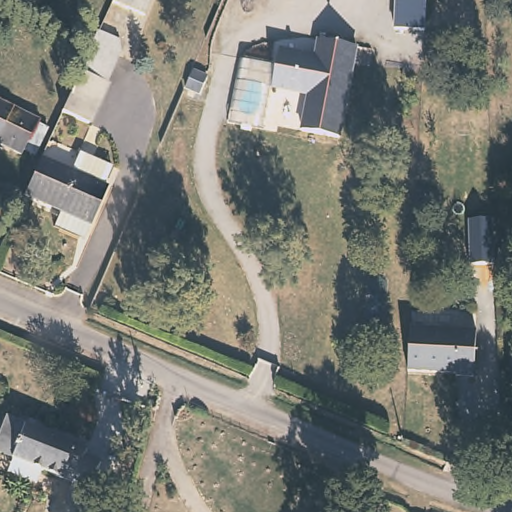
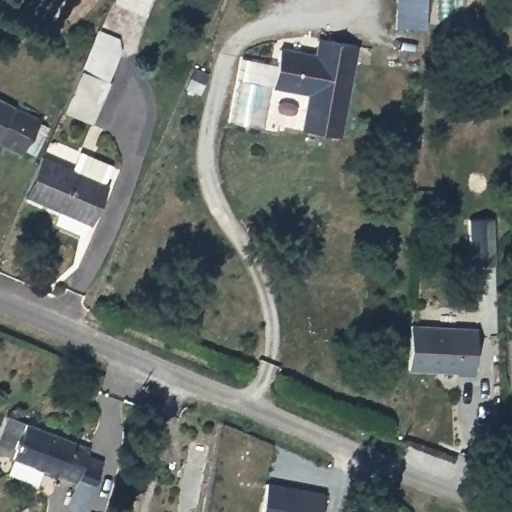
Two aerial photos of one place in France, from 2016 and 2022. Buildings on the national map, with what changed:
unchanged [(145,11),(119,0),(149,0),(145,11)]
unchanged [(424,27),(393,26),(394,0),(425,0),(424,27)]
unchanged [(96,30),(122,41),(124,54),(93,125),(59,111),(96,30)]
unchanged [(356,50),(343,140),(301,134),(306,99),(272,92),(278,54),(313,59),(316,43),(356,50)]
unchanged [(19,155),(7,150),(8,147),(0,144),(0,101),(25,113),(37,118),(19,155)]
unchanged [(80,149),(115,165),(107,185),(82,242),(48,229),(55,212),(20,198),(39,155),(72,169),(80,149)]
unchanged [(451,326),(473,327),(471,374),(453,373),(453,371),(451,370),(406,368),(406,363),(407,323),(451,326)]
unchanged [(24,461),(10,455),(7,449),(18,421),(37,429),(37,428),(99,453),(85,487),(24,462),(24,461)]
new [(320,512),(262,512),(266,482),(323,491),(320,512)]

